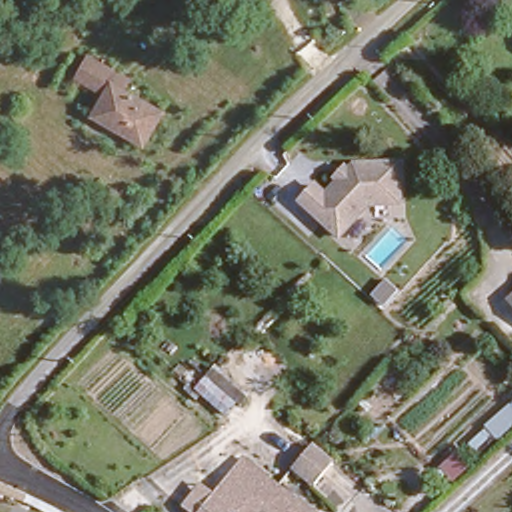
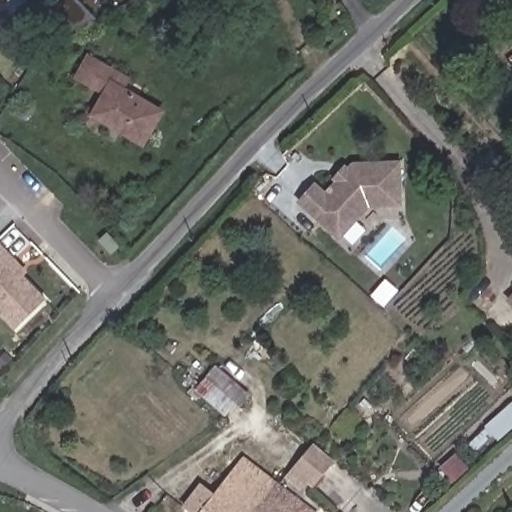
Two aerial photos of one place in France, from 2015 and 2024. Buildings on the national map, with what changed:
new [(0,0),(4,0),(0,3),(0,0)]
unchanged [(84,111),(93,91),(69,66),(83,44),(133,66),(129,78),(168,101),(143,145),(84,111)]
unchanged [(311,185),(323,194),(350,162),(394,159),(396,193),(397,199),(389,200),(365,201),(338,235),(297,201),(311,185)]
new [(48,299),(16,332),(0,314),(0,243),(28,271),(25,275),(48,299)]
unchanged [(509,300),(512,297),(512,303),(509,300)]
unchanged [(195,384),(206,370),(245,400),(234,415),(195,384)]
unchanged [(330,472),(313,493),(291,476),(293,473),(308,454),(330,472)]
unchanged [(195,508),(183,498),(194,486),(206,496),(242,456),(274,482),(259,501),(250,492),(237,506),(243,512),(191,512),(195,508)]
unchanged [(237,506),(250,492),(259,501),(274,482),(306,509),(303,512),(243,512),(237,506)]

